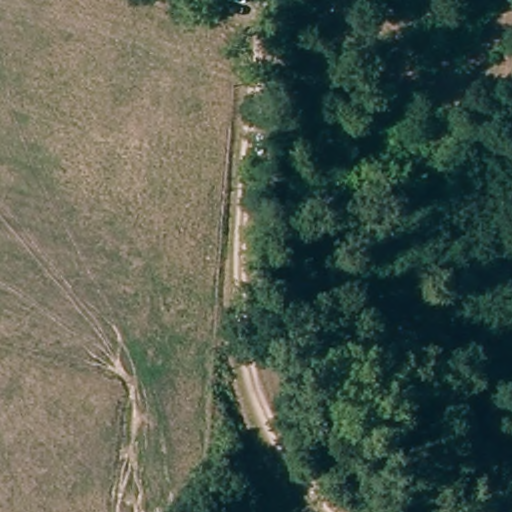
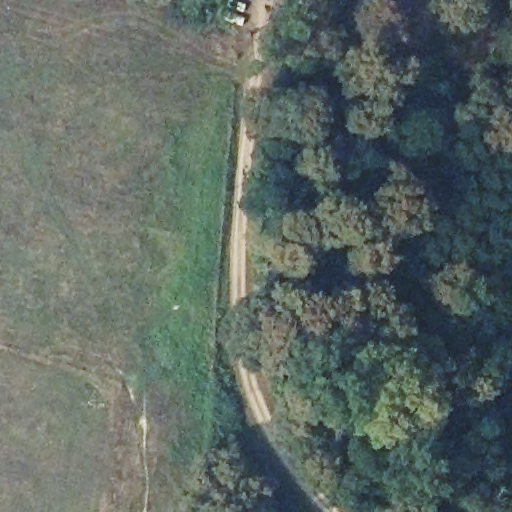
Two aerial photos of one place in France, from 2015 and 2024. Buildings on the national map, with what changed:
[]

